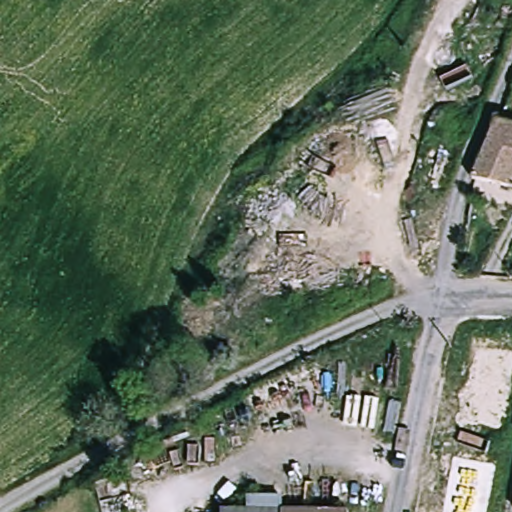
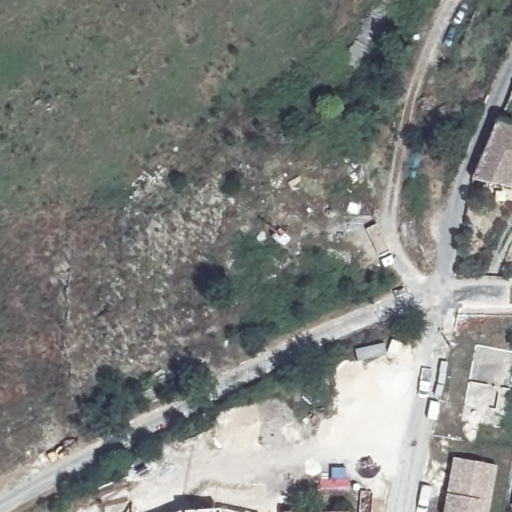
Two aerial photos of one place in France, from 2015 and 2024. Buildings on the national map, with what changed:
unchanged [(512,180),(480,176),(506,120),(512,122),(512,180)]
new [(487,512),(443,512),(446,495),(452,458),(496,466),(487,512)]
new [(249,510),(250,499),(282,499),(282,512),(222,512),(221,511),(249,510)]
demolished [(229,512),(230,508),(313,512),(229,512)]

